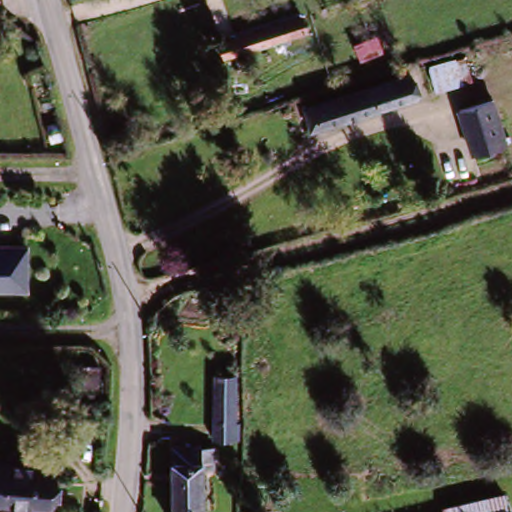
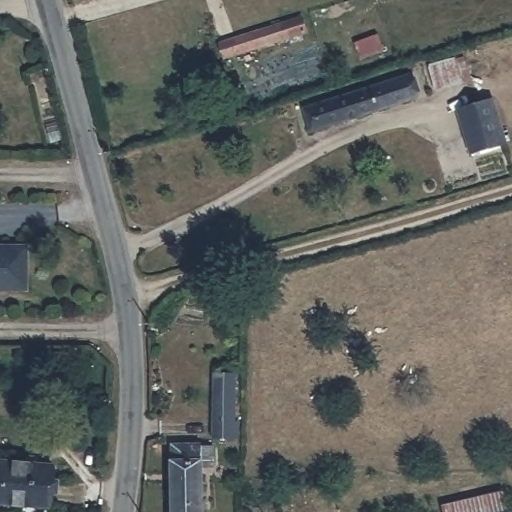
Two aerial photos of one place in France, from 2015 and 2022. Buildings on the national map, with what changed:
unchanged [(280,22),(283,40),(230,53),(225,35),(280,22)]
unchanged [(468,62),(477,87),(440,97),(432,74),(468,62)]
unchanged [(407,76),(413,100),(313,128),(305,105),(407,76)]
unchanged [(495,101),(509,144),(475,155),(461,112),(495,101)]
unchanged [(32,304),(0,304),(0,247),(32,247),(32,304)]
unchanged [(218,434),(215,397),(215,375),(235,373),(237,396),(242,396),(242,432),(218,434)]
unchanged [(175,439),(202,440),(215,440),(215,466),(201,467),(200,493),(200,512),(174,512),(175,492),(175,439)]
unchanged [(55,469),(53,503),(0,499),(0,459),(27,461),(28,467),(55,469)]
unchanged [(497,487),(503,510),(494,512),(426,512),(425,507),(497,487)]
unchanged [(504,512),(494,512),(503,510),(504,512)]

